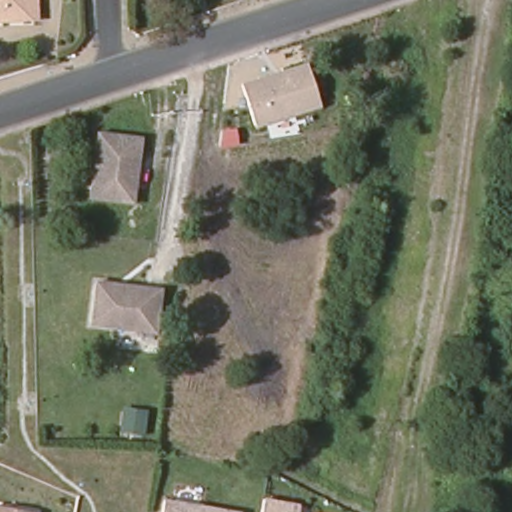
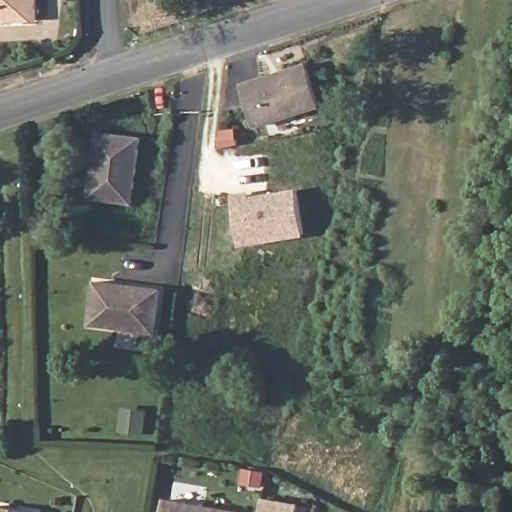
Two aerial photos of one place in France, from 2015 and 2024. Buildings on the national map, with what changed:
unchanged [(5,23),(0,23),(0,0),(42,0),(42,21),(5,23)]
unchanged [(254,129),(242,85),(306,64),(321,109),(254,129)]
unchanged [(139,135),(131,200),(89,195),(96,130),(139,135)]
new [(305,236),(241,247),(232,195),(252,192),(254,197),(297,189),(305,236)]
unchanged [(161,287),(156,330),(91,322),(96,279),(161,287)]
new [(126,411),(151,414),(148,433),(123,431),(126,411)]
unchanged [(225,512),(165,512),(166,501),(225,512)]
unchanged [(266,502),(301,508),(300,512),(264,512),(266,502)]
unchanged [(0,507),(26,512),(0,512),(0,507)]

